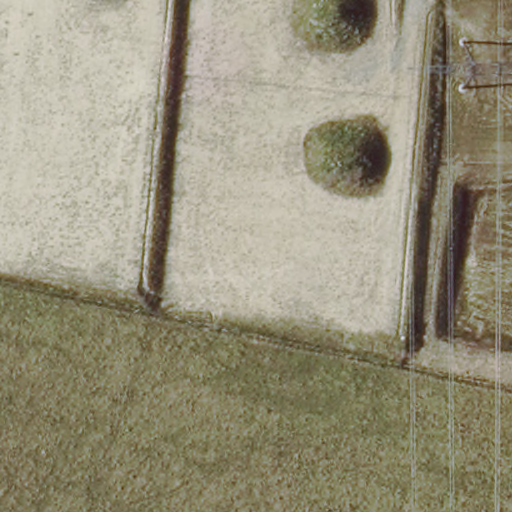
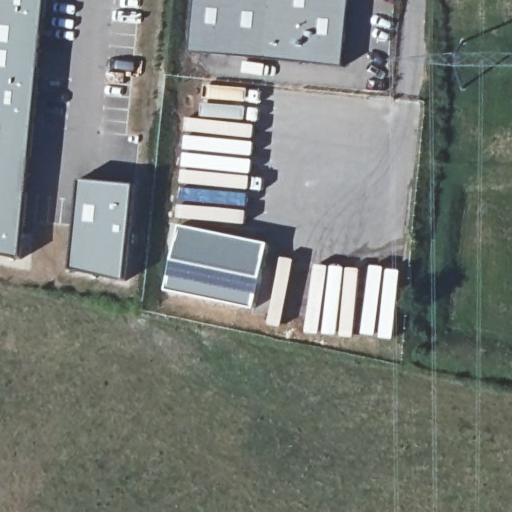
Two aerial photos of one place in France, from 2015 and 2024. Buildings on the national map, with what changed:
new [(0,0),(47,0),(22,259),(0,254),(0,0)]
new [(191,52),(196,0),(350,0),(343,66),(191,52)]
new [(70,271),(82,179),(135,187),(125,282),(70,271)]
new [(270,244),(257,310),(165,290),(180,225),(270,244)]

